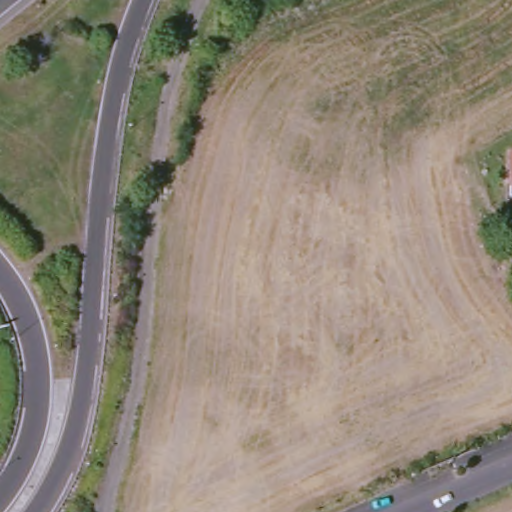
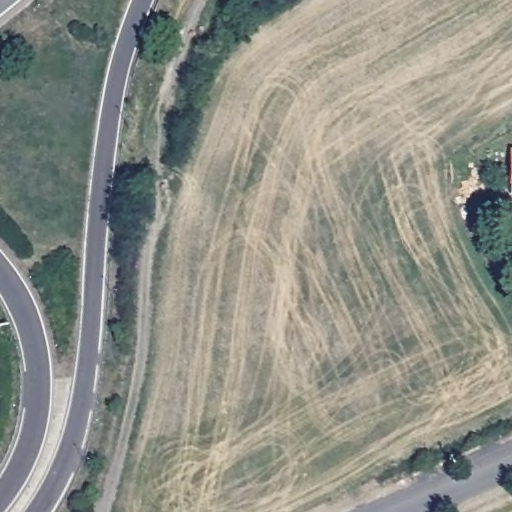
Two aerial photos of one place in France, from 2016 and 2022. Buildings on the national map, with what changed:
unchanged [(509,179),(509,150),(512,150),(512,193),(510,192),(509,179)]

